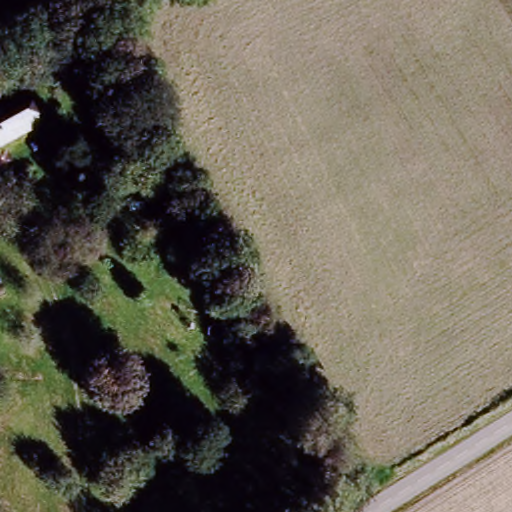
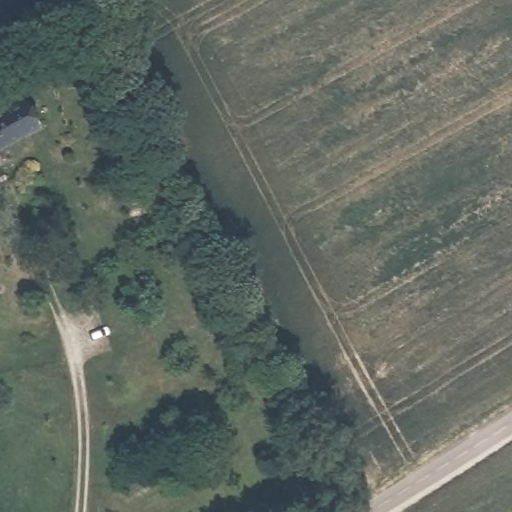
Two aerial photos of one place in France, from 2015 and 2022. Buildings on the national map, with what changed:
unchanged [(39,128),(0,150),(0,113),(21,102),(39,128)]

